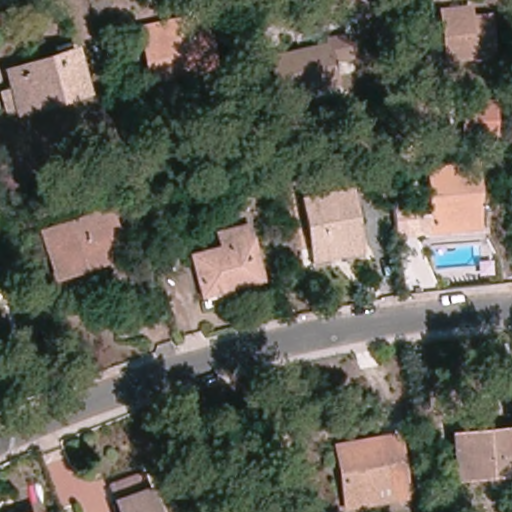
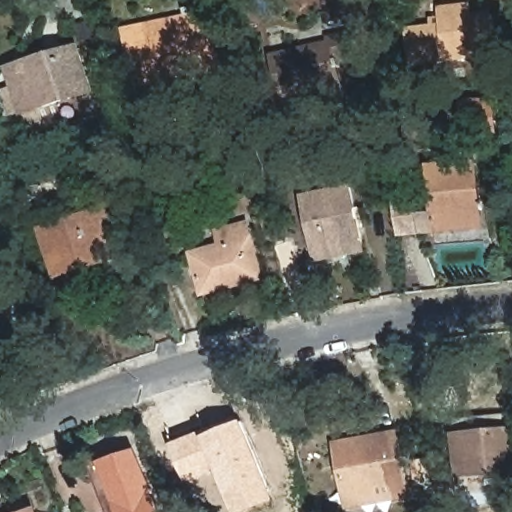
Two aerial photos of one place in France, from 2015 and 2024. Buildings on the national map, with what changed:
new [(331,20),(326,0),(360,0),(363,13),(331,20)]
unchanged [(472,59),(472,52),(445,56),(440,9),(467,6),(468,15),(486,13),(490,44),(492,56),(472,59)]
unchanged [(159,86),(150,41),(148,32),(209,18),(211,27),(220,73),(159,86)]
unchanged [(351,36),(356,60),(337,65),(342,85),(284,96),(276,57),(292,52),(332,44),(331,40),(351,36)]
unchanged [(437,45),(438,57),(427,58),(425,46),(437,45)]
unchanged [(87,92),(20,112),(9,77),(7,71),(58,56),(75,51),(87,92)]
unchanged [(431,231),(430,221),(427,169),(475,165),(477,217),(478,227),(431,231)]
unchanged [(317,261),(316,249),(306,199),(353,189),(363,239),(366,251),(317,261)]
unchanged [(58,282),(56,275),(45,237),(97,222),(94,214),(112,208),(125,254),(109,259),(111,267),(58,282)]
unchanged [(204,290),(196,256),(223,249),(219,234),(249,225),(262,281),(232,289),(205,296),(204,290)]
new [(202,433),(205,438),(244,422),(276,502),(253,512),(233,512),(217,472),(186,484),(170,446),(202,433)]
unchanged [(512,426),(512,471),(460,475),(456,431),(512,426)]
unchanged [(348,508),(346,496),(336,450),(397,438),(407,485),(409,497),(348,508)]
new [(137,450),(150,483),(146,486),(114,497),(119,512),(107,512),(91,467),(100,464),(137,450)]
unchanged [(146,486),(156,512),(119,512),(114,497),(146,486)]

